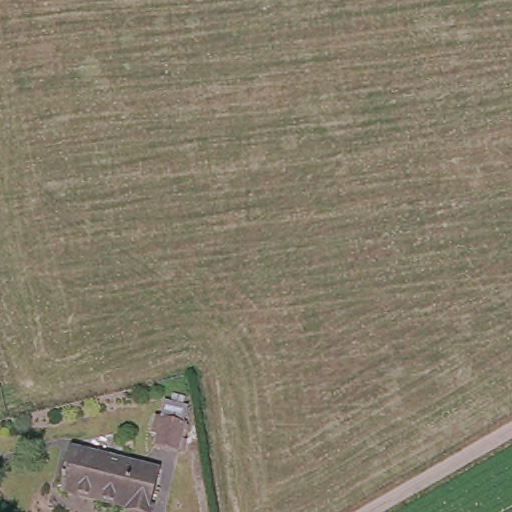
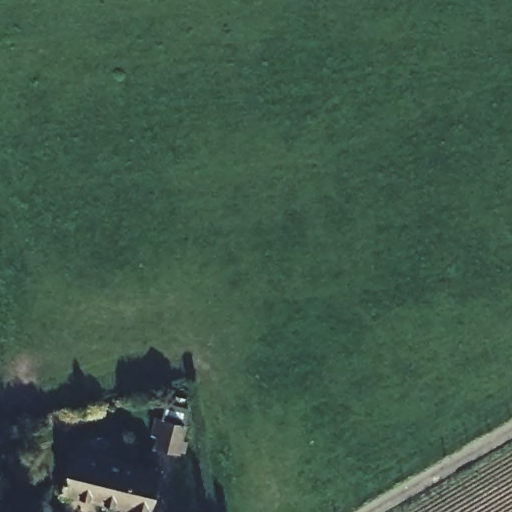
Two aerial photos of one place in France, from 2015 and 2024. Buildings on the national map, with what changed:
unchanged [(176,391),(170,423),(136,417),(142,385),(176,391)]
unchanged [(157,469),(150,512),(131,512),(131,508),(63,496),(71,454),(146,467),(157,469)]

